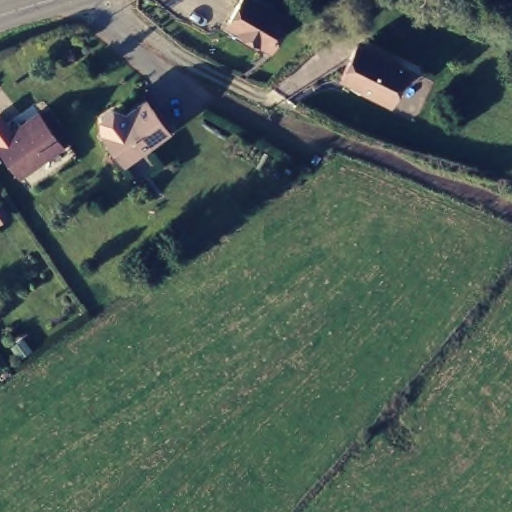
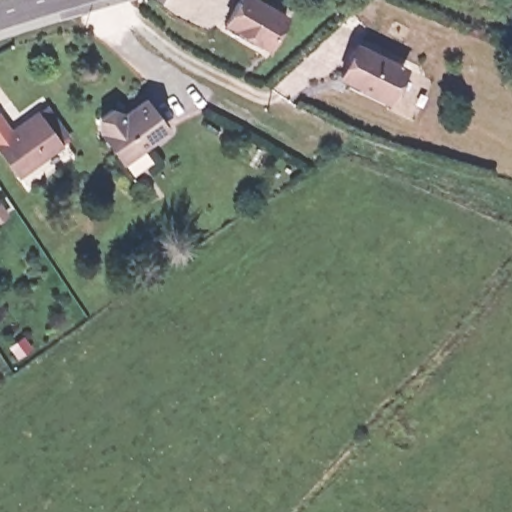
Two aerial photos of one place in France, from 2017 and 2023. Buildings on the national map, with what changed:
unchanged [(222,13),(229,0),(269,0),(281,6),(264,36),(222,13)]
unchanged [(387,93),(342,71),(357,40),(403,61),(387,93)]
unchanged [(124,151),(107,127),(106,113),(117,104),(130,111),(151,95),(173,125),(145,145),(129,157),(124,151)]
unchanged [(20,172),(0,145),(0,135),(39,107),(63,141),(20,172)]
unchanged [(0,201),(0,197),(2,200),(0,201)]

